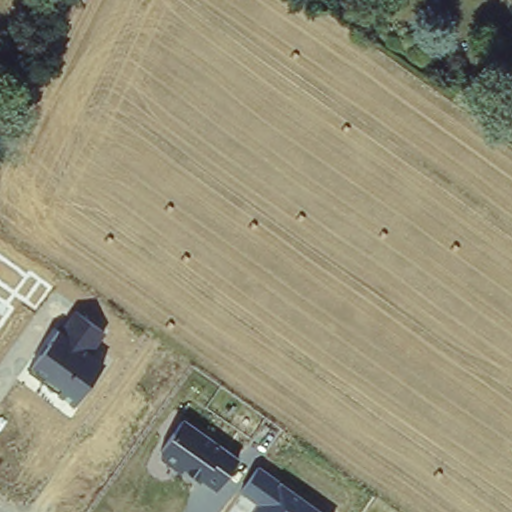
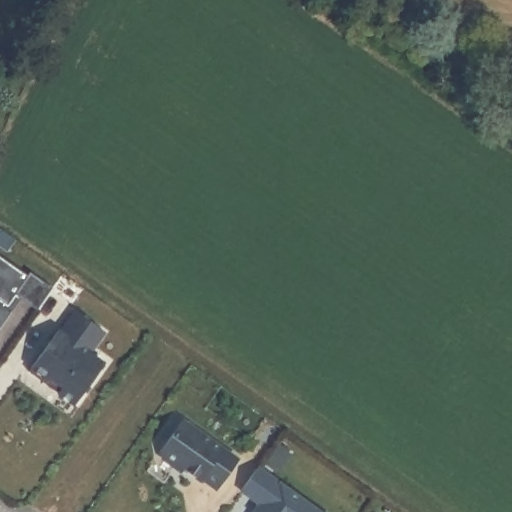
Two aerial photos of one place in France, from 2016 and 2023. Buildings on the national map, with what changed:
new [(27,277),(30,273),(52,288),(36,310),(15,295),(7,304),(14,308),(0,328),(0,258),(27,277)]
unchanged [(75,402),(29,368),(58,325),(63,329),(76,309),(107,332),(93,350),(107,361),(75,402)]
unchanged [(220,486),(204,475),(199,480),(163,459),(162,451),(182,417),(241,457),(220,486)]
unchanged [(264,507),(242,491),(258,463),(325,512),(261,512),(264,507)]

